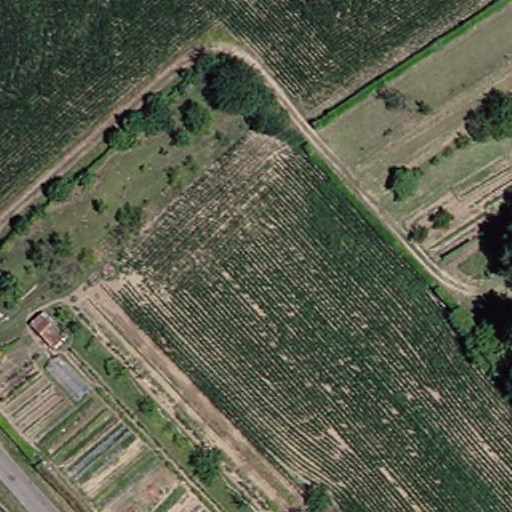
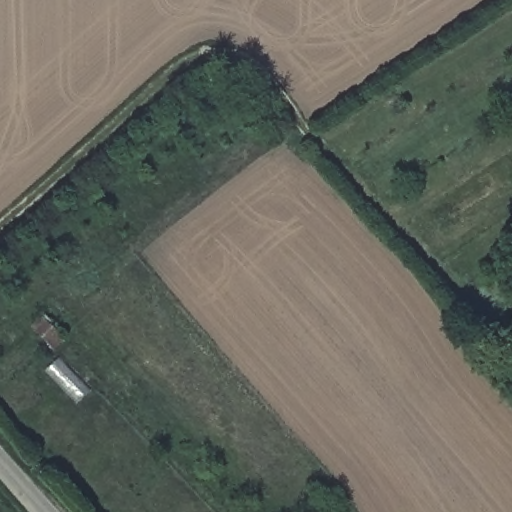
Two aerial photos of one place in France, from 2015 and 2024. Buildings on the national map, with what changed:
unchanged [(39,339),(31,331),(41,322),(48,330),(39,339)]

